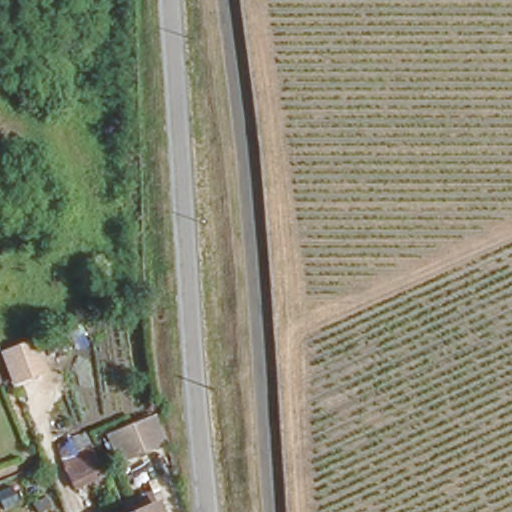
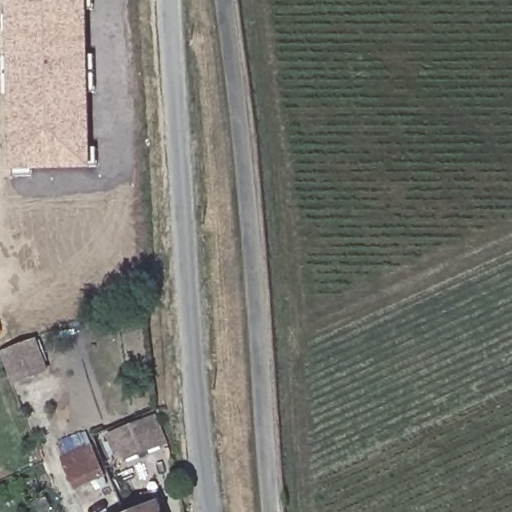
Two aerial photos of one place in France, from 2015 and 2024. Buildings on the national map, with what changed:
new [(11,172),(7,7),(0,4),(0,0),(88,0),(92,170),(11,172)]
new [(39,336),(51,371),(13,386),(0,351),(39,336)]
unchanged [(104,431),(121,424),(148,414),(156,438),(157,442),(132,452),(115,459),(104,431)]
unchanged [(102,467),(73,479),(62,451),(89,439),(102,467)]
unchanged [(129,503),(154,493),(159,505),(162,512),(133,512),(129,503)]

